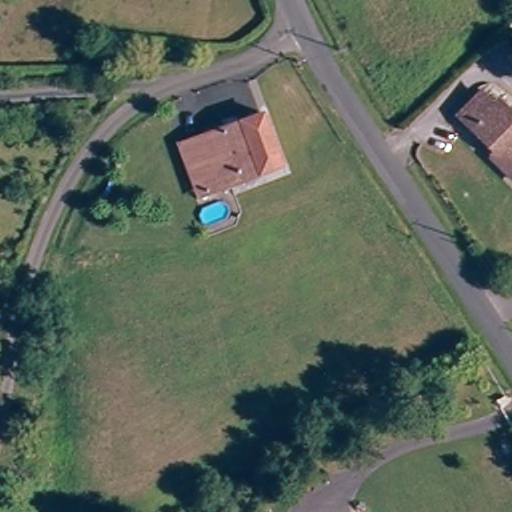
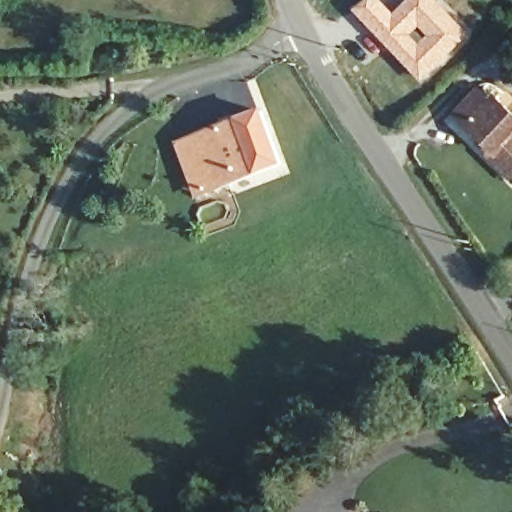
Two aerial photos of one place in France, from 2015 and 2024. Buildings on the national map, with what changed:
new [(367,0),(383,0),(395,12),(409,0),(437,0),(472,36),(422,83),(353,11),(367,0)]
unchanged [(512,115),(512,179),(506,183),(488,157),(491,155),(470,126),(460,112),(486,93),(496,107),(503,102),(512,115)]
unchanged [(199,178),(184,148),(262,111),(285,160),(215,193),(208,197),(199,178)]

